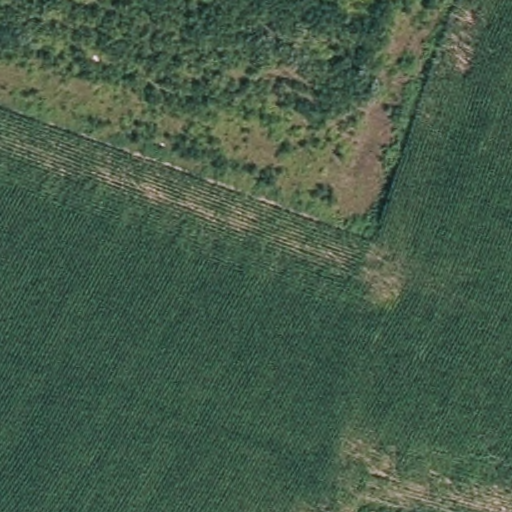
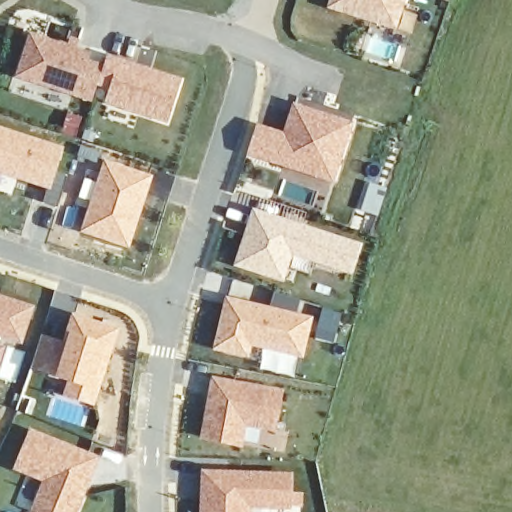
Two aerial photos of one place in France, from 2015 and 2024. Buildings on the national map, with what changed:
new [(329,11),(332,0),(408,0),(399,31),(329,11)]
new [(92,53),(90,61),(106,65),(109,57),(183,80),(169,125),(105,107),(110,92),(97,88),(93,102),(13,77),(28,34),(92,53)]
new [(284,134),(294,103),(355,123),(335,183),(248,156),(258,125),(284,134)]
new [(51,191),(0,174),(0,127),(64,148),(51,191)]
new [(129,250),(80,234),(104,161),(153,176),(129,250)]
new [(252,209),(363,244),(352,276),(292,257),(283,283),(233,267),(252,209)]
new [(22,345),(0,338),(0,296),(34,307),(22,345)]
new [(312,317),(302,359),(253,347),(250,360),(213,352),(225,297),(312,317)]
new [(47,337),(66,343),(73,314),(119,329),(94,407),(63,397),(68,383),(44,375),(47,366),(47,337)]
new [(5,347),(0,363),(0,346),(5,347)]
new [(284,390),(275,432),(246,427),(242,447),(199,440),(211,376),(284,390)]
new [(78,512),(35,512),(31,511),(43,482),(13,470),(29,429),(100,457),(78,512)]
new [(252,510),(252,512),(200,512),(202,471),(283,474),(281,511),(252,510)]

